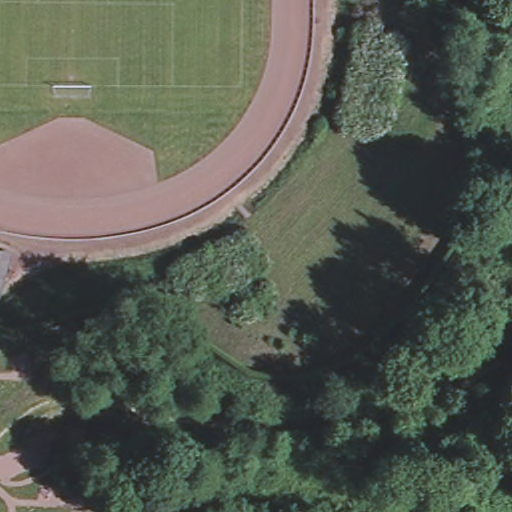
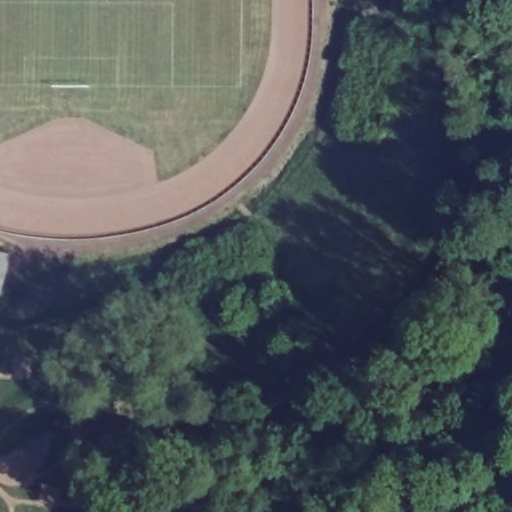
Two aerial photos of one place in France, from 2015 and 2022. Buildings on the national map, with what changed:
unchanged [(5,248),(0,265),(0,247),(5,248)]

